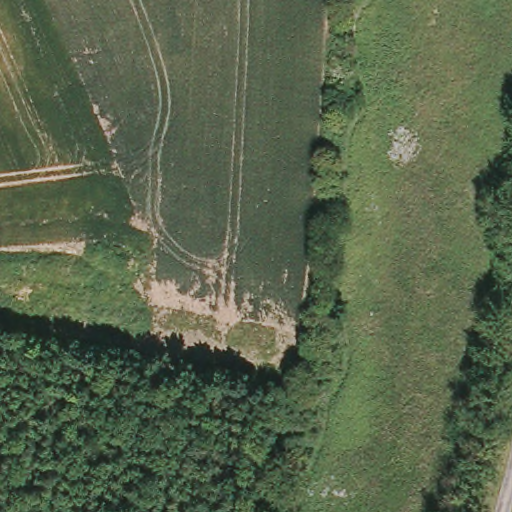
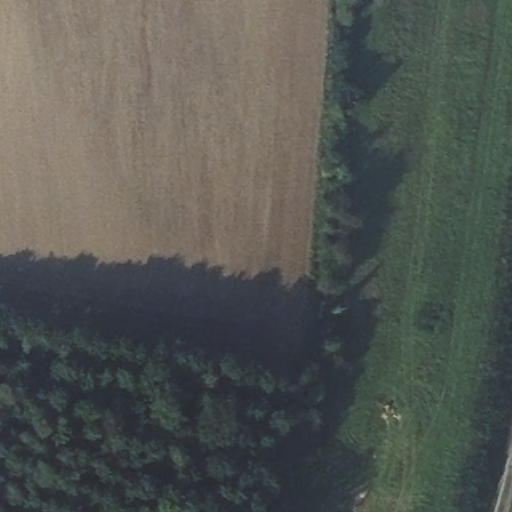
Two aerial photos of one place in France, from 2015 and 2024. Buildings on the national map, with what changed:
[]

